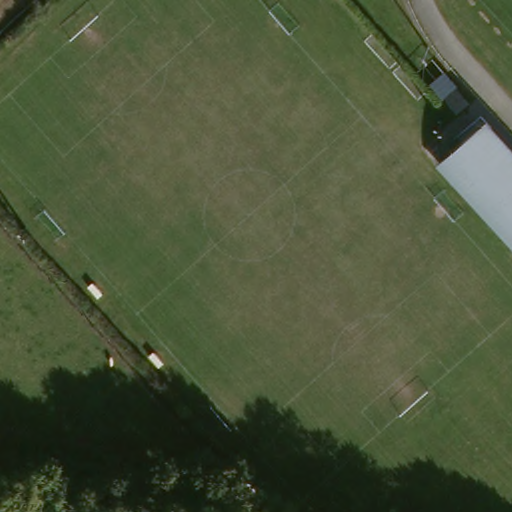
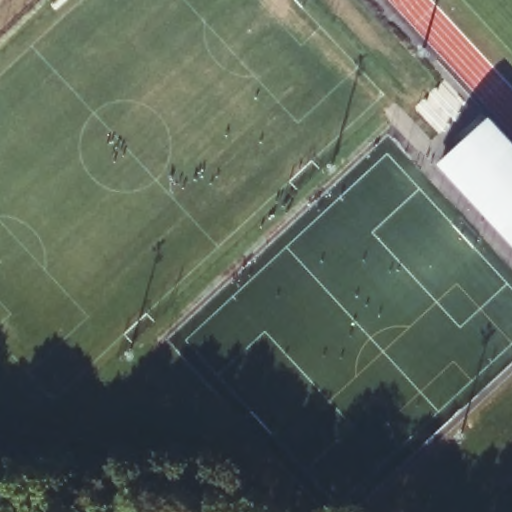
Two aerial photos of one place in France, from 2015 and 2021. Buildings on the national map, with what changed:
unchanged [(486,121),(512,149),(512,183),(469,137),(486,121)]
unchanged [(512,183),(512,227),(447,158),(467,139),(469,137),(512,183)]

